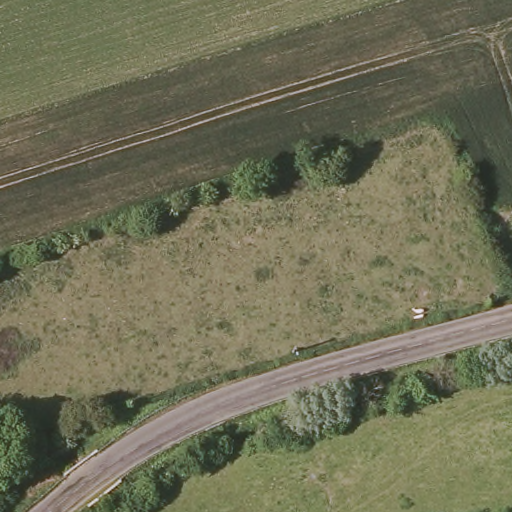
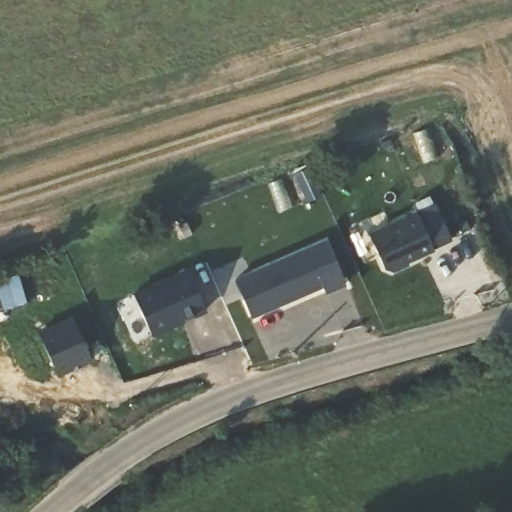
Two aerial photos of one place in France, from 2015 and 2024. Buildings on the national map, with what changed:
new [(384,272),(367,236),(435,204),(450,242),(384,272)]
new [(251,319),(233,279),(325,240),(345,287),(325,295),(322,289),(251,319)]
new [(205,309),(152,334),(132,292),(186,269),(205,309)]
new [(92,359),(58,377),(35,332),(70,314),(92,359)]

